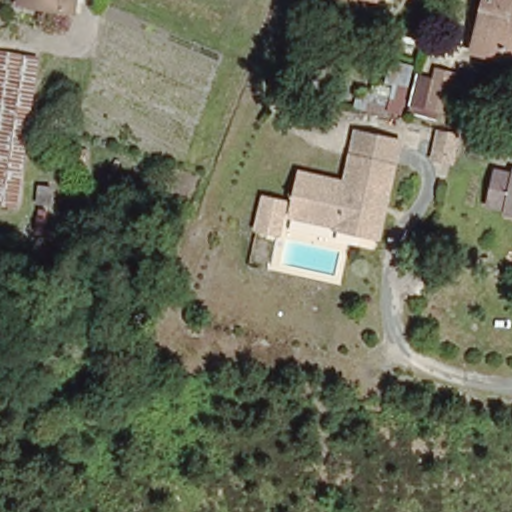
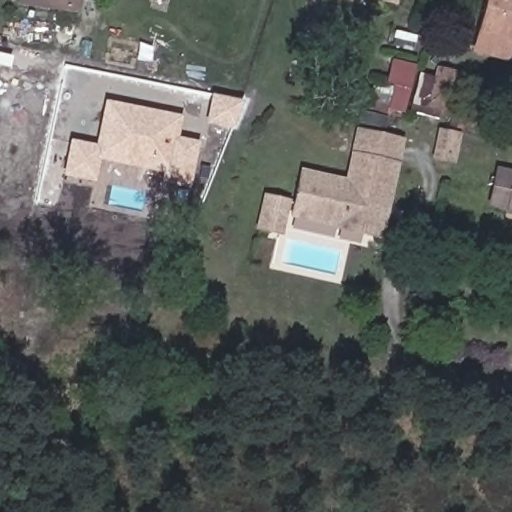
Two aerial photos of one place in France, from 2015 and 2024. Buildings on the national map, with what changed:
unchanged [(20,2),(20,0),(78,0),(76,10),(20,2)]
unchanged [(474,38),(485,0),(512,0),(512,59),(471,47),(474,38)]
unchanged [(30,112),(22,162),(16,202),(0,199),(0,48),(38,54),(30,112)]
unchanged [(405,108),(379,104),(386,59),(413,64),(405,108)]
unchanged [(459,75),(447,113),(424,107),(436,68),(459,75)]
new [(187,188),(159,182),(161,172),(98,159),(93,184),(60,177),(68,140),(93,145),(104,99),(181,116),(177,137),(196,142),(187,188)]
unchanged [(383,241),(288,219),(282,236),(255,230),(262,194),(290,201),(298,169),(345,179),(355,129),(403,138),(383,241)]
unchanged [(501,211),(503,202),(488,199),(494,168),(511,172),(512,170),(512,213),(501,211)]

